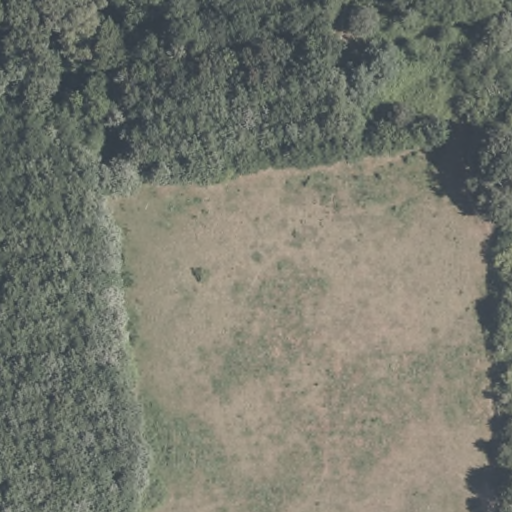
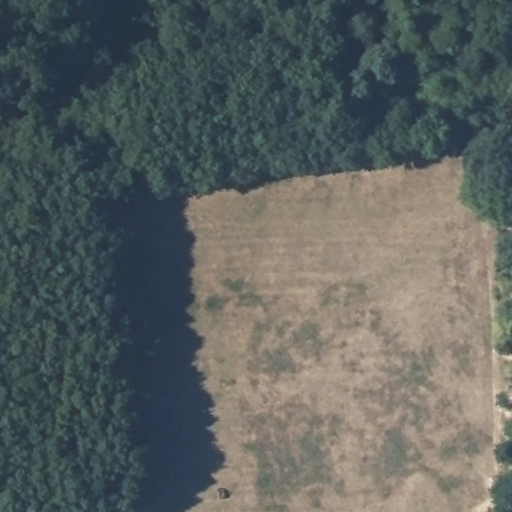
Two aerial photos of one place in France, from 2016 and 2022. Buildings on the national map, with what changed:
[]

